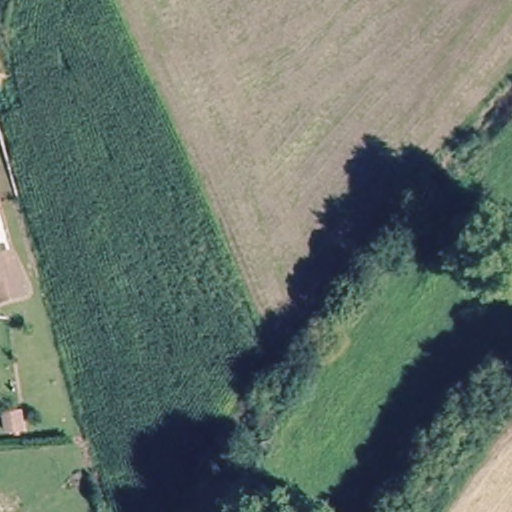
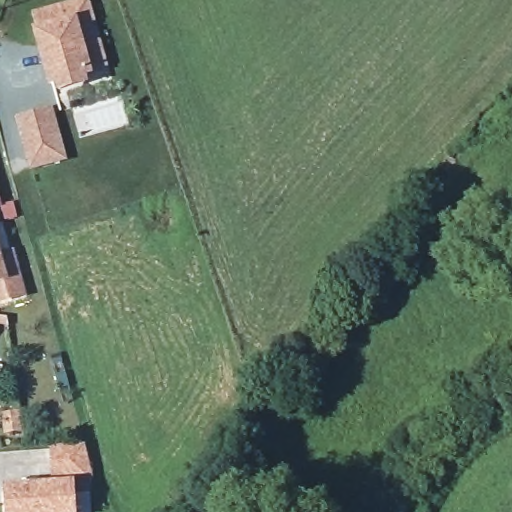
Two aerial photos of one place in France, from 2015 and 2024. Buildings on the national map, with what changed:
new [(90,0),(96,21),(88,24),(94,41),(100,39),(107,66),(90,71),(92,78),(87,80),(90,87),(57,96),(55,86),(49,88),(46,76),(42,77),(31,30),(37,29),(31,11),(74,0),(90,0)]
new [(55,106),(69,160),(29,172),(14,118),(55,106)]
unchanged [(24,300),(5,306),(0,290),(0,263),(14,260),(19,281),(25,300),(24,300)]
new [(85,444),(92,476),(52,481),(49,447),(85,444)]
new [(74,484),(76,512),(4,512),(2,485),(74,484)]

